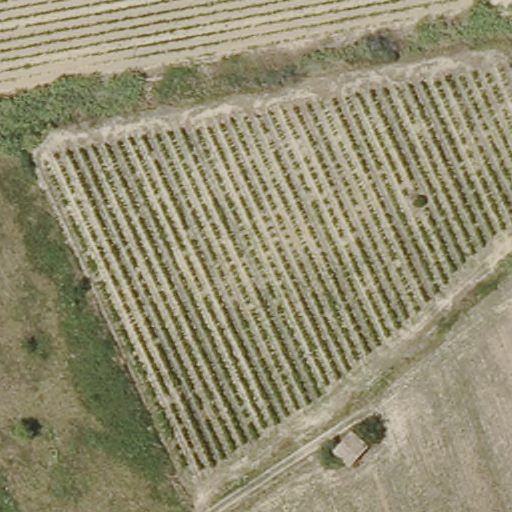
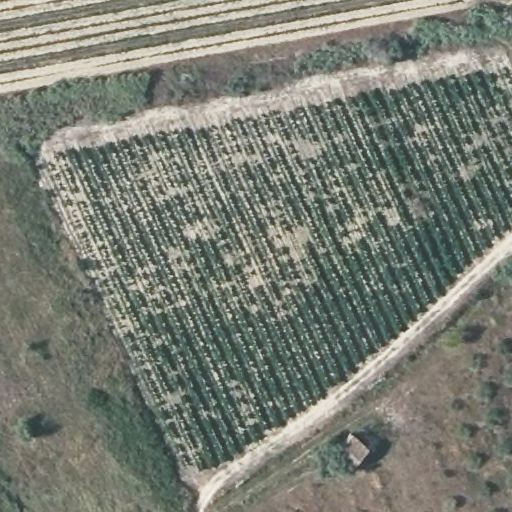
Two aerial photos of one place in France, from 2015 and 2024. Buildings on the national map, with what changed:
unchanged [(349,434),(367,446),(352,468),(333,456),(349,434)]

